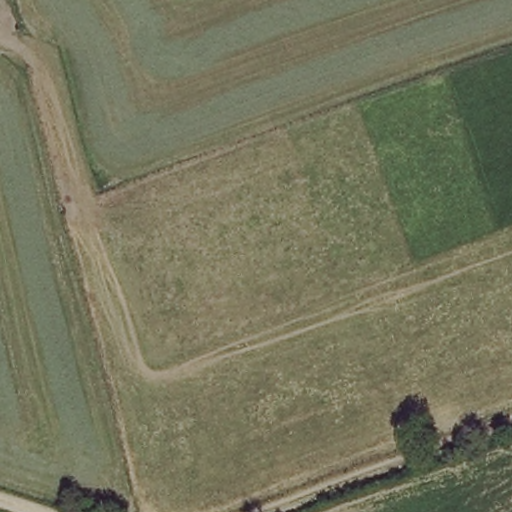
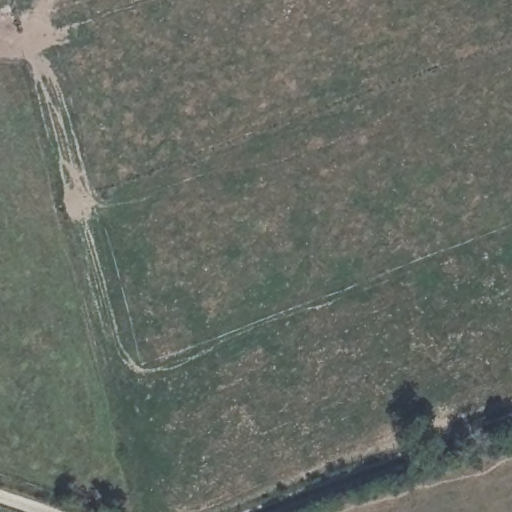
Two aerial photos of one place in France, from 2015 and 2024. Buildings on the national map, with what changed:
[]

